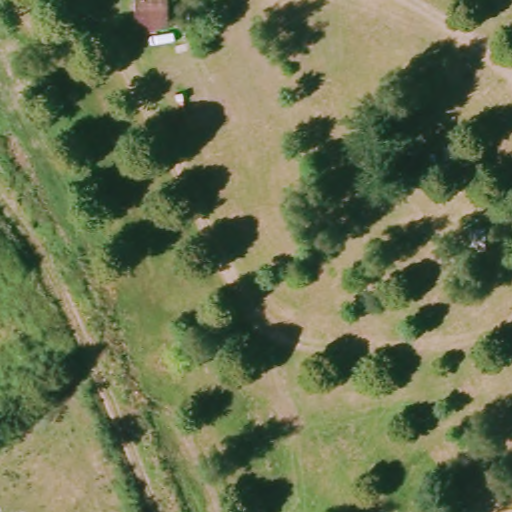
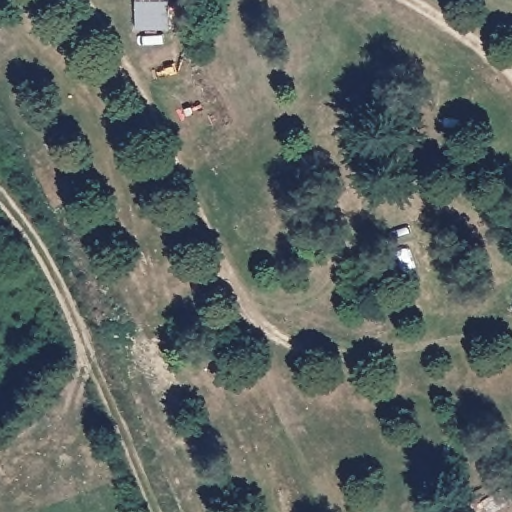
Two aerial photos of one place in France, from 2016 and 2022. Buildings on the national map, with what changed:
unchanged [(132,29),(131,0),(168,0),(168,29),(132,29)]

